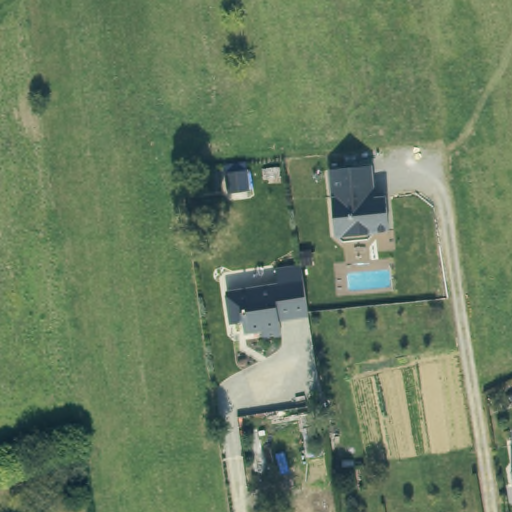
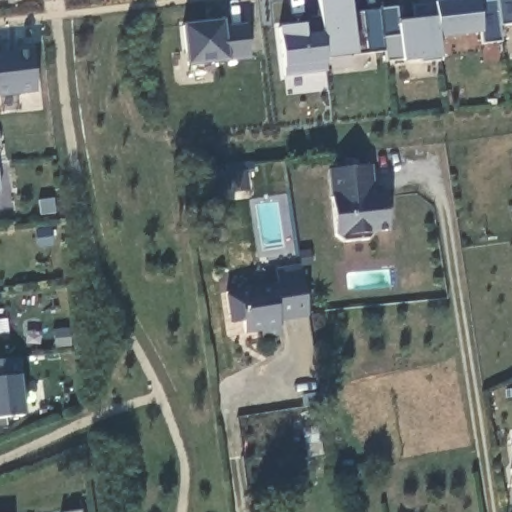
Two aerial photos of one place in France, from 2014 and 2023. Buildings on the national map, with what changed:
new [(284,68),(278,27),(304,24),(299,18),(321,17),(318,0),(349,0),(351,15),(398,7),(402,21),(418,19),(413,6),(435,4),(435,2),(435,0),(477,0),(478,3),(498,1),(497,0),(512,0),(512,25),(500,26),(502,42),(482,44),(483,33),(439,38),(441,58),(402,62),(402,60),(387,61),(386,52),(326,60),(327,64),(327,71),(285,75),(284,68)]
new [(251,59),(229,61),(188,66),(183,25),(223,21),(224,28),(246,24),(251,59)]
new [(0,97),(0,54),(32,51),(37,92),(0,97)]
unchanged [(373,168),(375,192),(371,197),(375,201),(387,200),(391,234),(377,235),(371,243),(345,245),(337,239),(331,173),(373,168)]
unchanged [(248,174),(250,192),(230,195),(228,176),(248,174)]
new [(1,192),(0,192),(0,186),(1,192)]
unchanged [(281,288),(278,273),(303,270),(310,314),(280,319),(283,338),(265,341),(264,334),(247,336),(244,318),(232,320),(228,296),(281,288)]
new [(20,375),(24,416),(8,419),(9,427),(0,429),(0,361),(17,359),(20,375)]
unchanged [(512,462),(510,449),(512,449),(512,462)]
unchanged [(512,470),(512,493),(509,474),(512,470)]
new [(84,512),(77,512),(84,511),(84,512)]

